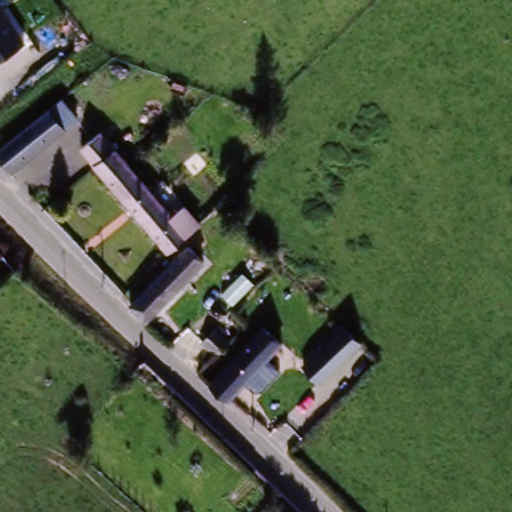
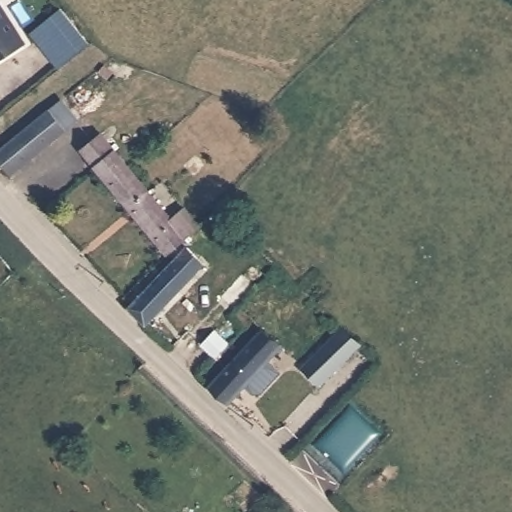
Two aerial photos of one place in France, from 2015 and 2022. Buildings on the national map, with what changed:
unchanged [(0,60),(0,6),(24,43),(0,60)]
new [(88,42),(59,66),(52,58),(32,33),(55,14),(60,9),(88,42)]
unchanged [(0,153),(58,106),(72,94),(87,113),(73,124),(10,175),(0,162),(0,153)]
unchanged [(185,204),(201,223),(194,230),(187,237),(169,255),(95,166),(82,151),(101,135),(114,150),(166,212),(172,207),(177,213),(185,204)]
unchanged [(145,326),(130,310),(190,248),(207,265),(145,326)]
unchanged [(278,342),(225,401),(207,385),(260,326),(278,342)]
unchanged [(306,365),(344,326),(360,342),(322,380),(306,365)]
unchanged [(205,348),(220,333),(232,344),(218,359),(205,348)]

